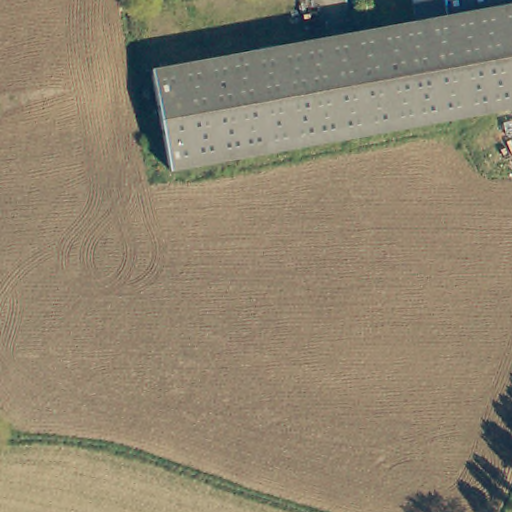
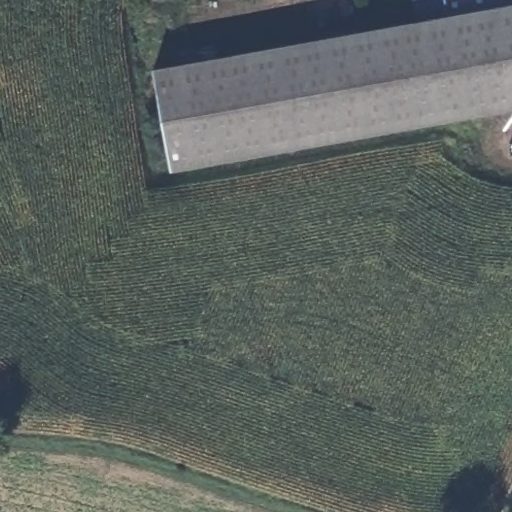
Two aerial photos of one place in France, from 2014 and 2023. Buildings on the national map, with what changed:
unchanged [(167,166),(150,68),(446,18),(443,0),(512,0),(512,112),(167,166)]

